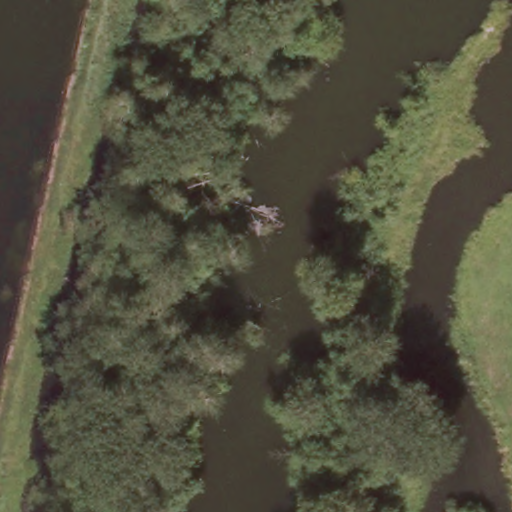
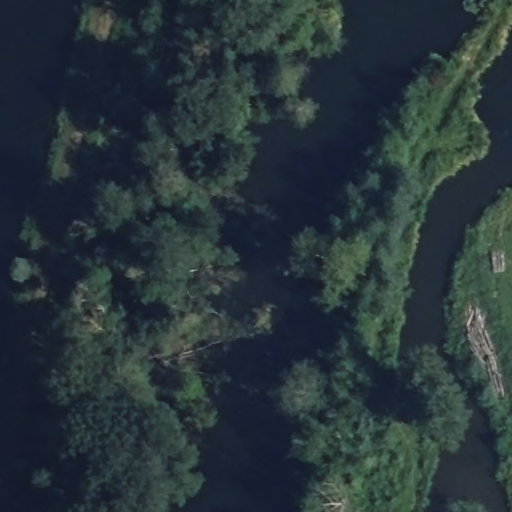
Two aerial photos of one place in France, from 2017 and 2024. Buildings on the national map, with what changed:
[]

